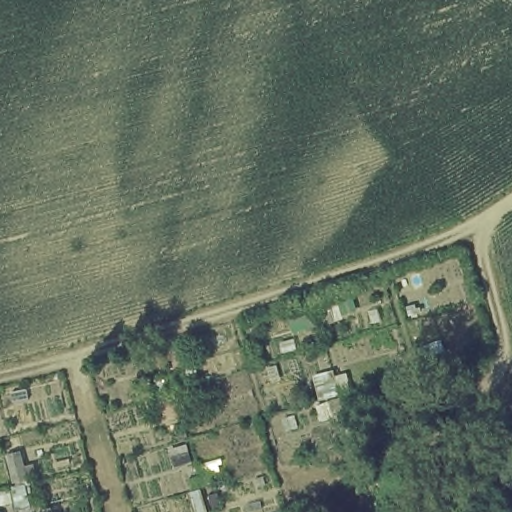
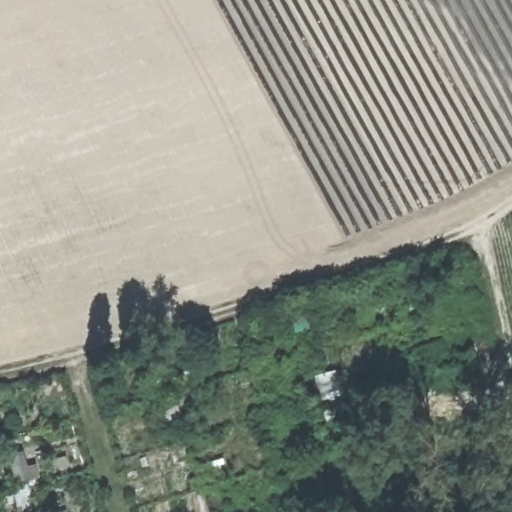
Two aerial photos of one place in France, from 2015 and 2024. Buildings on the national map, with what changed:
[]

